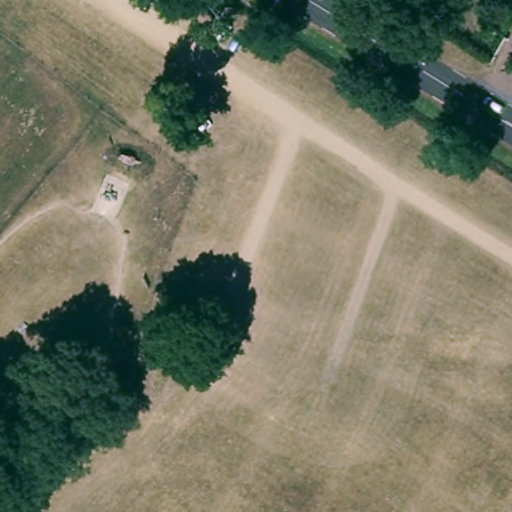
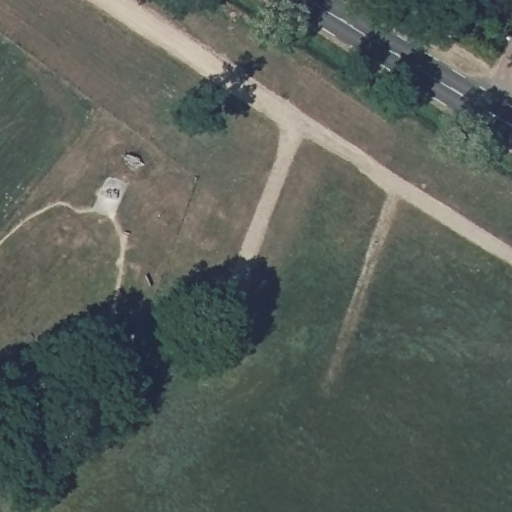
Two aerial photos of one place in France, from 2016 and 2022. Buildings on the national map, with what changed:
[]

